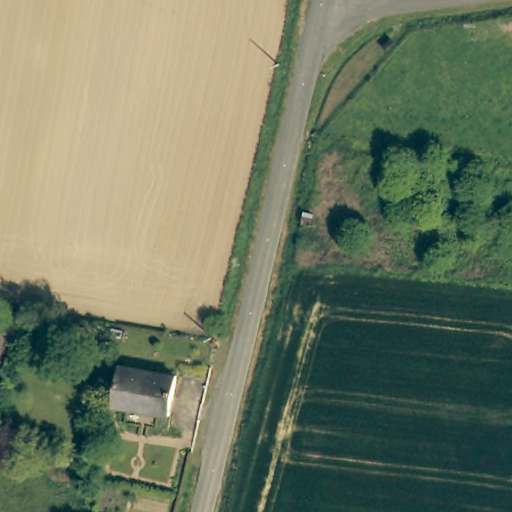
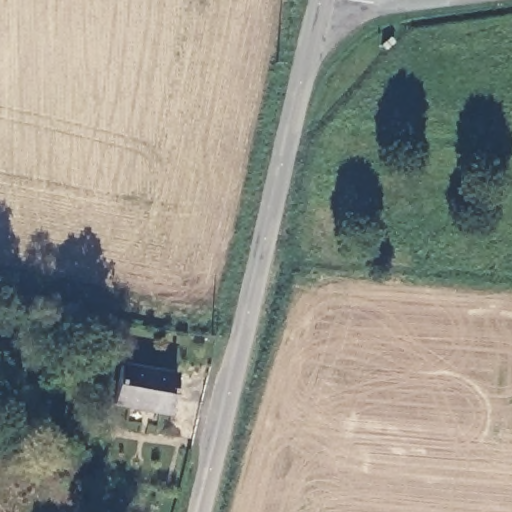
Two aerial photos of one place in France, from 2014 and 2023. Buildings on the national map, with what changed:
unchanged [(177,372),(171,412),(117,403),(123,364),(177,372)]

